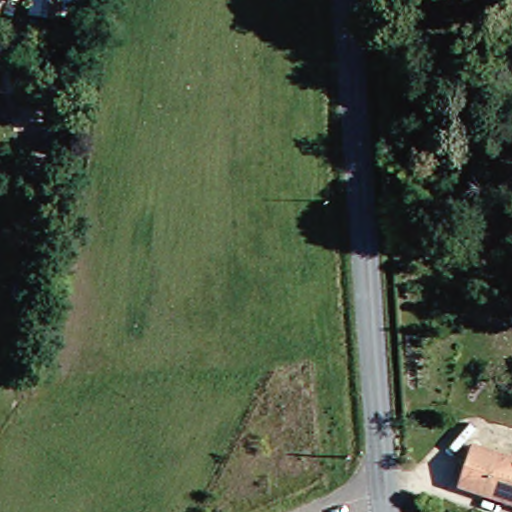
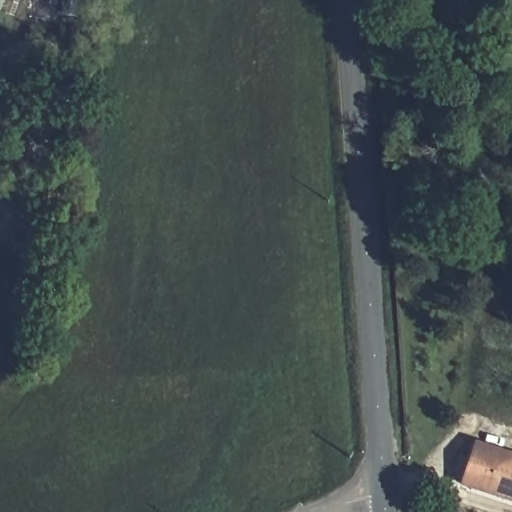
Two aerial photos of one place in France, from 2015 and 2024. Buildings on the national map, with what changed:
unchanged [(467,440),(512,458),(512,508),(451,484),(467,440)]

